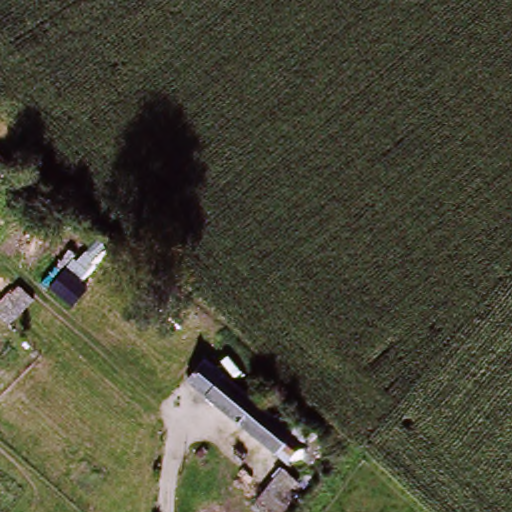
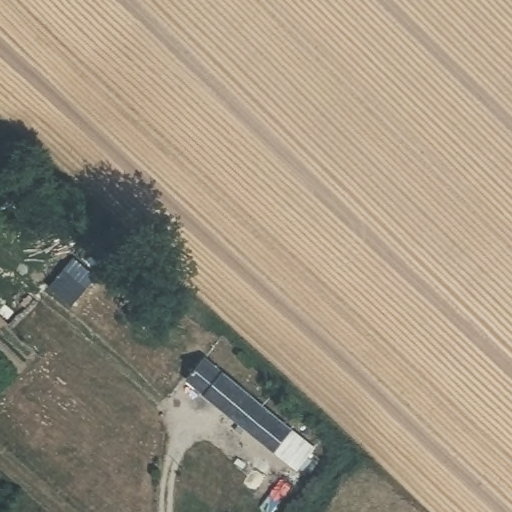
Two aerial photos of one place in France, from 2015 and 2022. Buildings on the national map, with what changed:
unchanged [(186,382),(204,359),(286,427),(303,442),(286,464),(269,450),(186,382)]

